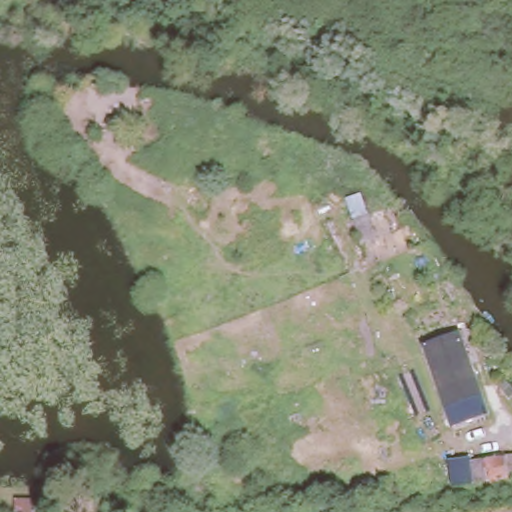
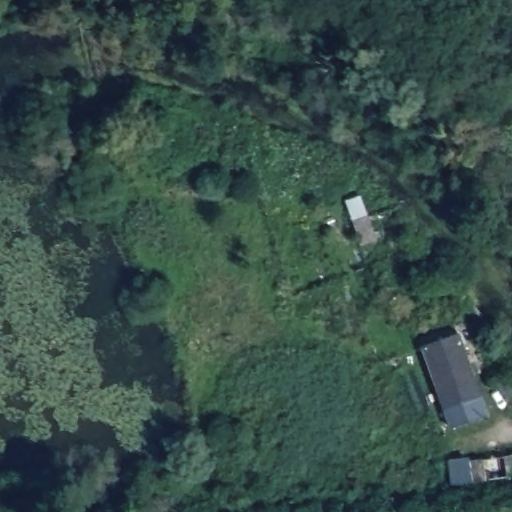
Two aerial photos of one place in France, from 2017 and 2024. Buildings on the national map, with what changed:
unchanged [(344,199),(361,191),(371,224),(355,229),(344,199)]
unchanged [(423,346),(457,333),(487,415),(451,426),(423,346)]
unchanged [(472,459),(505,456),(507,476),(475,480),(472,459)]

